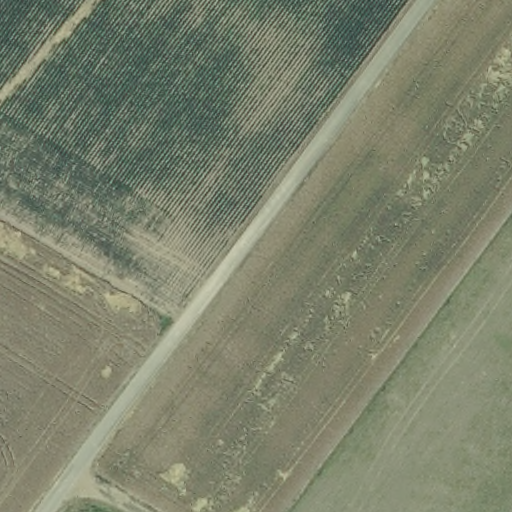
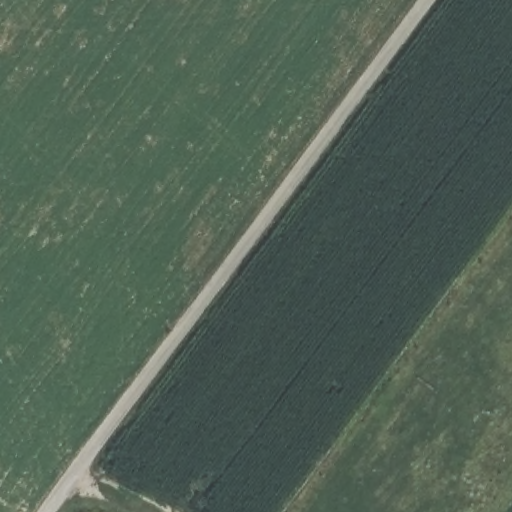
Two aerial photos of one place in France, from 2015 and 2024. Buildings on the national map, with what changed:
[]

